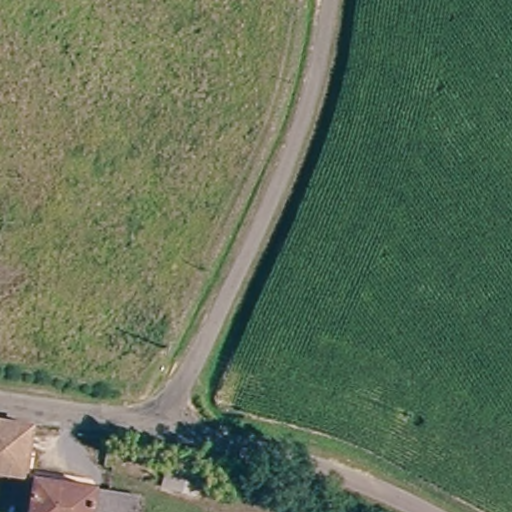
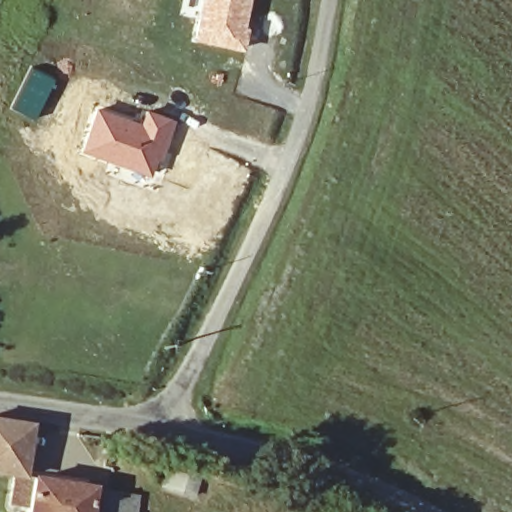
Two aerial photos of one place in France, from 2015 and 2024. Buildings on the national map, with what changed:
new [(200,0),(251,0),(245,25),(248,26),(243,53),(189,41),(200,0)]
new [(29,65),(56,79),(35,121),(9,108),(29,65)]
new [(97,106),(139,121),(145,107),(178,120),(164,151),(150,178),(81,151),(97,106)]
unchanged [(31,478),(0,473),(0,429),(39,435),(31,478)]
unchanged [(26,506),(31,478),(111,493),(131,497),(129,512),(39,512),(39,508),(26,506)]

